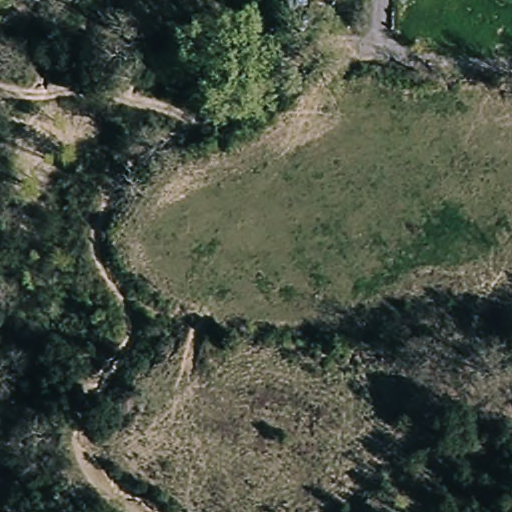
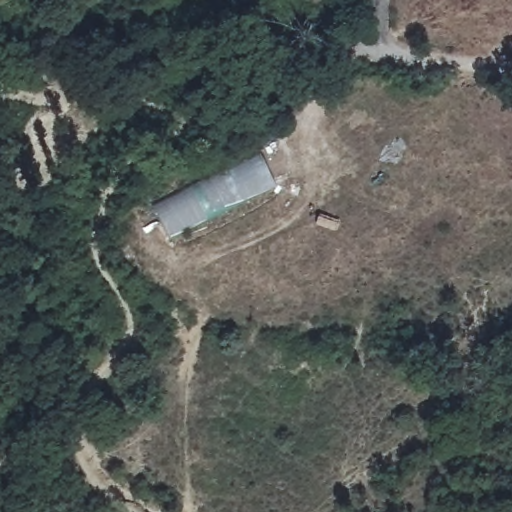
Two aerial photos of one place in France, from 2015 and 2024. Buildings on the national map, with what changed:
new [(170,238),(153,204),(260,153),(277,185),(170,238)]

